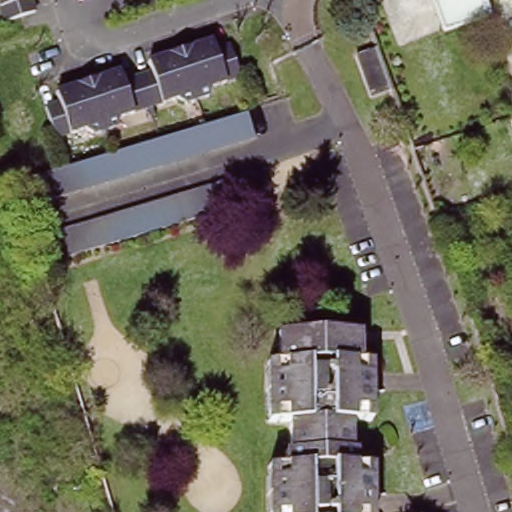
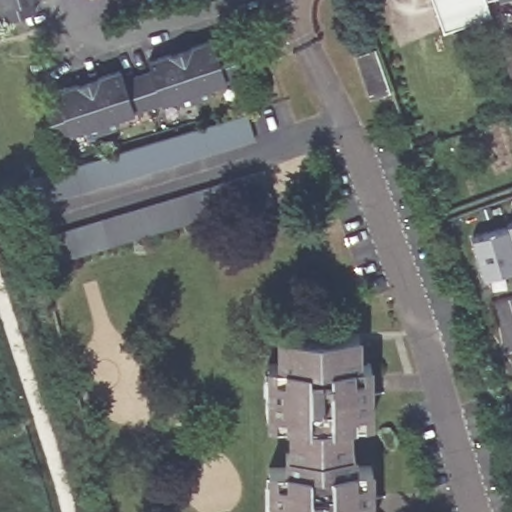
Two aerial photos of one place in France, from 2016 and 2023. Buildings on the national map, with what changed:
unchanged [(35,14),(2,25),(0,17),(0,0),(30,0),(35,14)]
unchanged [(491,14),(442,26),(436,0),(486,0),(491,14)]
unchanged [(512,63),(510,64),(501,39),(512,35),(512,63)]
unchanged [(114,124),(86,133),(79,131),(78,129),(47,138),(37,108),(51,104),(47,92),(85,80),(120,69),(123,79),(138,75),(150,71),(147,58),(184,47),(220,36),(223,46),(238,42),(247,73),(216,82),(217,84),(214,92),(187,100),(180,97),(180,95),(117,114),(118,115),(114,124)]
unchanged [(376,49),(390,90),(371,97),(357,56),(376,49)]
unchanged [(247,113),(255,137),(26,207),(19,184),(247,113)]
unchanged [(265,169),(272,195),(42,267),(35,240),(265,169)]
new [(472,237),(507,226),(506,223),(512,221),(512,269),(482,277),(472,237)]
unchanged [(360,361),(372,362),(372,392),(372,420),(350,420),(350,450),(356,450),(356,464),(373,465),(373,496),(373,512),(270,512),(270,465),(287,465),(287,451),(291,451),(291,423),(270,423),(270,362),(280,362),(281,332),(360,332),(360,361)]

